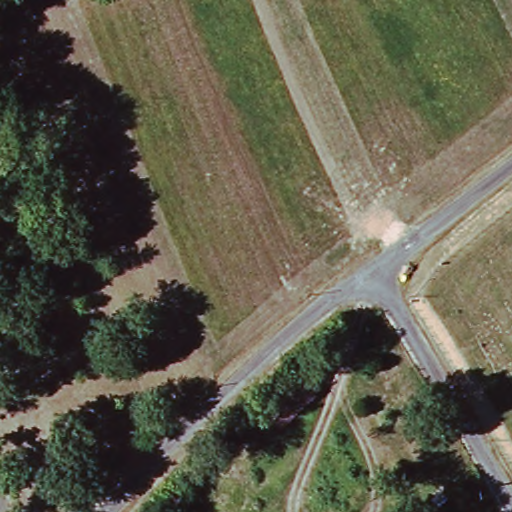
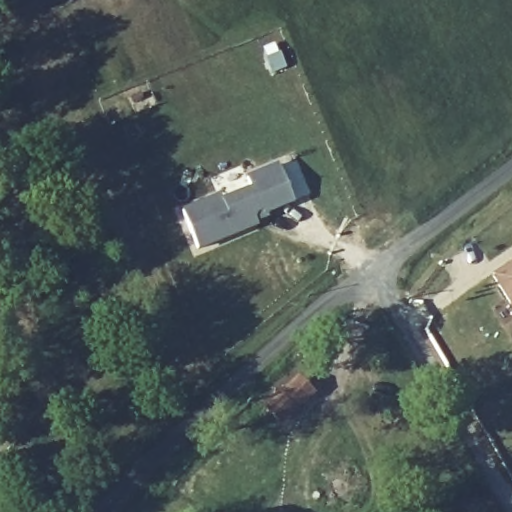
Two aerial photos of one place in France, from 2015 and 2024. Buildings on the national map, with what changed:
new [(253,221),(254,224),(197,249),(182,211),(218,196),(221,201),(250,187),(246,178),(276,165),(291,201),(263,212),(265,216),(253,221)]
new [(509,272),(512,270),(512,307),(493,276),(507,267),(509,272)]
unchanged [(260,400),(291,371),(305,385),(273,415),(260,400)]

